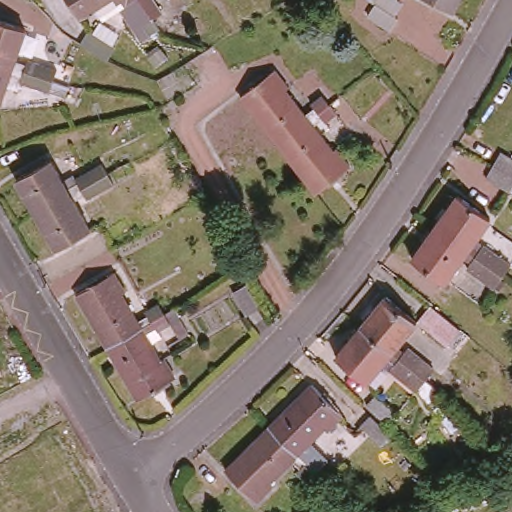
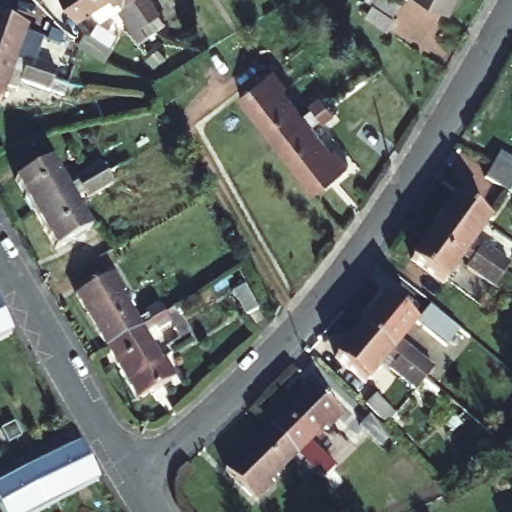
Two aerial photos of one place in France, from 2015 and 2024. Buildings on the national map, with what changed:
unchanged [(142,38),(122,7),(116,7),(102,17),(95,7),(77,17),(66,0),(139,0),(151,17),(158,29),(142,38)]
unchanged [(151,17),(139,0),(154,0),(161,11),(151,17)]
new [(381,0),(397,9),(390,22),(392,24),(385,36),(362,22),(370,11),(376,0),(381,0)]
unchanged [(425,0),(457,0),(450,12),(425,0)]
unchanged [(27,74),(0,63),(0,22),(27,33),(17,63),(27,67),(29,62),(57,74),(53,83),(27,74)]
unchanged [(111,41),(104,54),(89,45),(82,41),(88,28),(111,41)]
unchanged [(49,95),(21,85),(23,80),(12,76),(0,105),(0,63),(27,74),(53,83),(49,95)]
unchanged [(240,97),(273,71),(287,87),(283,90),(290,100),(303,116),(313,109),(310,104),(320,97),(328,107),(310,121),(277,146),(240,97)]
unchanged [(335,116),(325,124),(322,120),(312,128),(332,152),(336,150),(350,166),(315,192),(277,146),(310,121),(328,107),(335,116)]
unchanged [(512,163),(512,185),(507,194),(483,181),(490,168),(497,155),(512,163)]
unchanged [(35,214),(15,180),(49,160),(65,187),(77,181),(75,177),(100,162),(107,174),(35,214)]
unchanged [(112,183),(87,197),(85,194),(73,201),(90,230),(56,248),(35,214),(107,174),(112,183)]
unchanged [(432,227),(454,196),(487,217),(468,244),(477,250),(482,243),(510,263),(502,275),(432,227)]
unchanged [(492,288),(464,268),(469,261),(461,255),(442,282),(415,263),(411,260),(432,227),(502,275),(492,288)]
unchanged [(75,294),(113,272),(124,291),(120,293),(137,322),(148,316),(145,310),(157,303),(162,312),(134,329),(129,332),(105,347),(75,294)]
unchanged [(358,327),(383,298),(413,323),(394,347),(402,354),(408,348),(435,371),(424,382),(358,327)]
new [(12,330),(0,336),(0,305),(12,330)]
unchanged [(432,308),(459,327),(447,344),(420,322),(432,308)]
unchanged [(168,322),(156,329),(153,325),(142,331),(158,360),(162,357),(175,377),(135,398),(105,347),(129,332),(134,329),(162,312),(168,322)]
unchanged [(414,393),(388,372),(393,366),(384,358),(364,381),(350,368),(335,356),(357,328),(358,327),(424,382),(414,393)]
unchanged [(310,385),(341,416),(325,432),(321,428),(298,451),(307,460),(312,456),(321,466),(312,475),(265,427),(310,385)]
demolished [(3,430),(0,432),(0,424),(3,430)]
unchanged [(304,482),(294,473),(298,470),(289,460),(265,482),(268,487),(253,502),(238,487),(222,470),(265,427),(312,475),(304,482)]
new [(100,480),(36,512),(4,512),(0,504),(0,483),(79,440),(100,480)]
demolished [(7,492),(13,503),(18,512),(0,512),(0,495),(7,492)]
demolished [(88,494),(96,508),(88,512),(64,512),(62,508),(88,494)]

